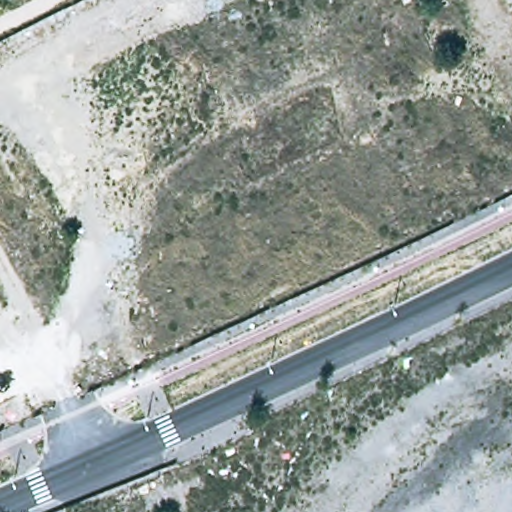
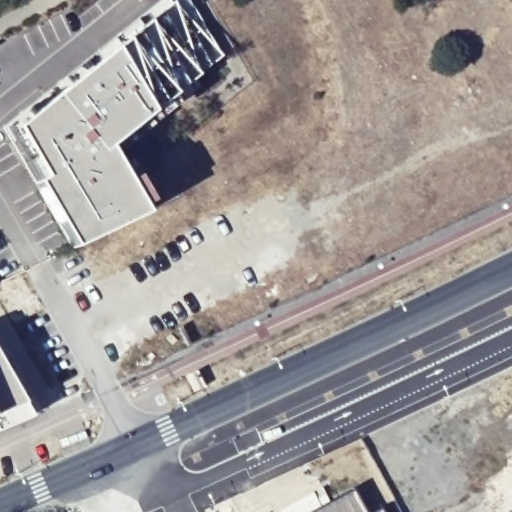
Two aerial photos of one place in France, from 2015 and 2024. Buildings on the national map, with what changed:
new [(154,210),(71,250),(3,129),(168,0),(186,0),(219,59),(120,150),(154,210)]
new [(23,403),(31,417),(0,430),(0,366),(23,403)]
new [(377,512),(276,512),(353,470),(377,512)]

